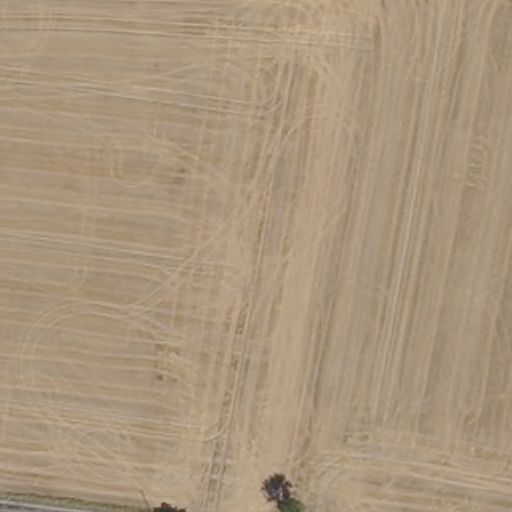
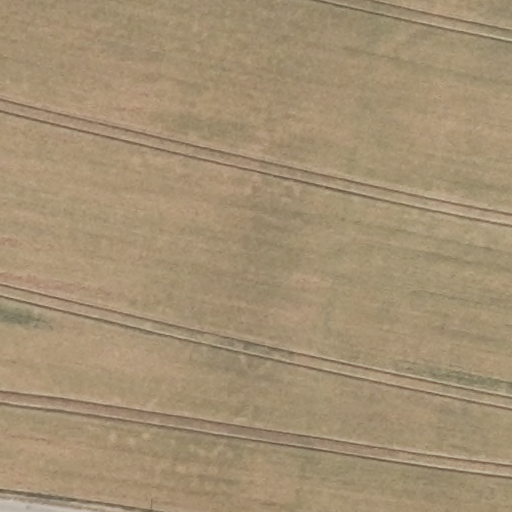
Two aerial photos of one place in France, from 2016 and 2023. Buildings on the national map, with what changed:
[]

